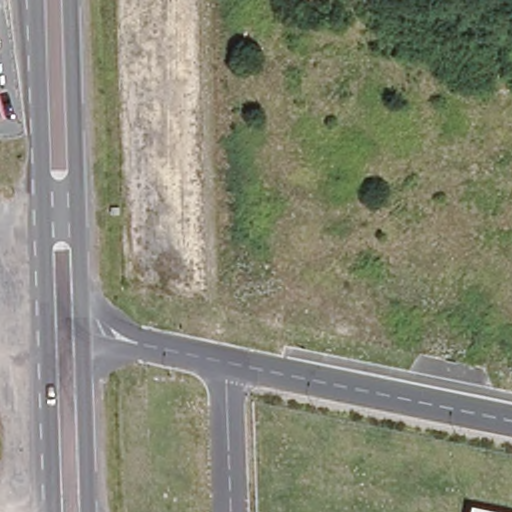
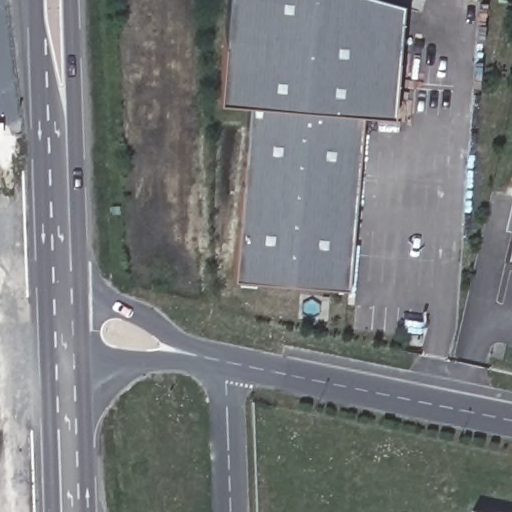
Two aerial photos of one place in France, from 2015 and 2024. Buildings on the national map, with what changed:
new [(391,120),(362,118),(250,109),(220,106),(228,0),(378,0),(400,6),(391,120)]
new [(236,282),(250,109),(362,118),(347,291),(236,282)]
new [(512,240),(512,263),(507,262),(512,240)]

